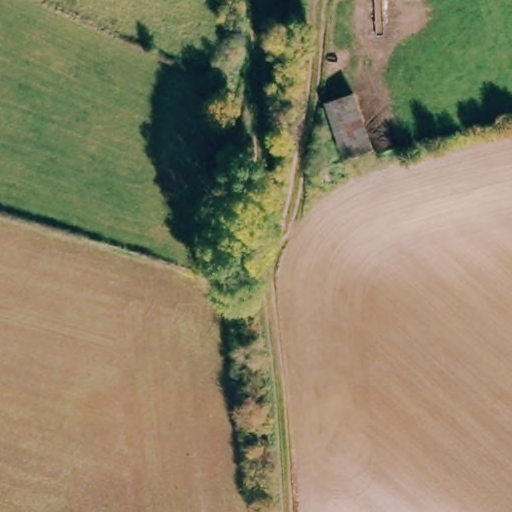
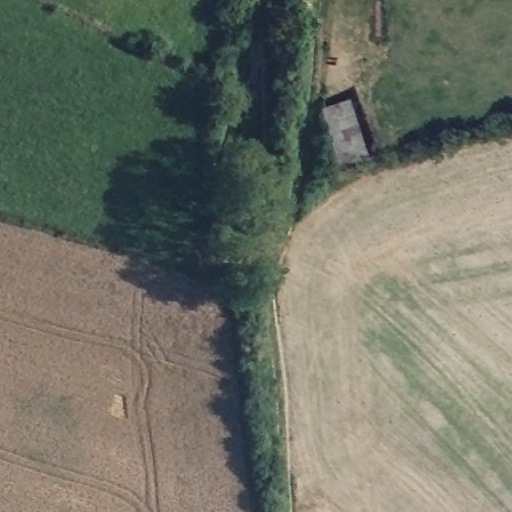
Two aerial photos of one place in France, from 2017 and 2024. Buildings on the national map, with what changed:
unchanged [(352,96),(369,151),(343,158),(327,104),(352,96)]

